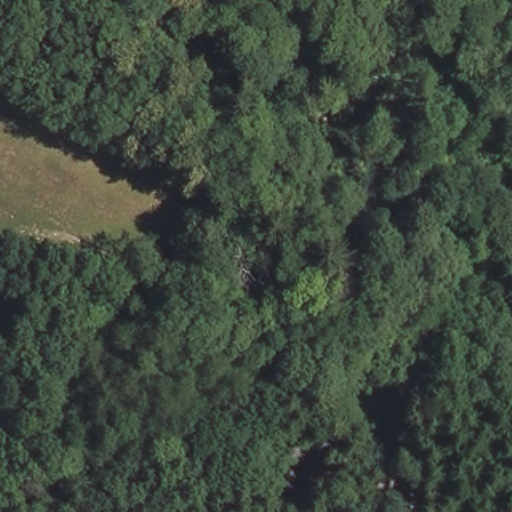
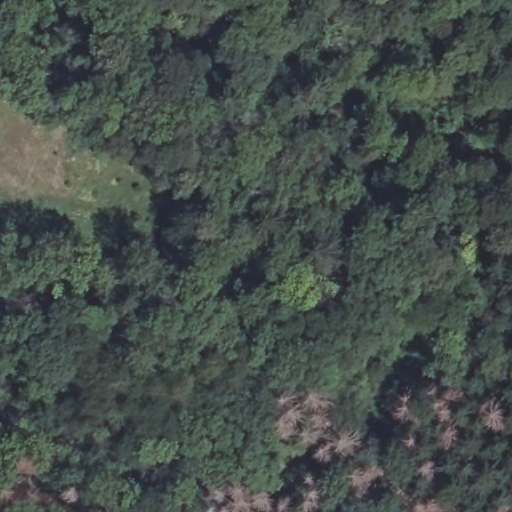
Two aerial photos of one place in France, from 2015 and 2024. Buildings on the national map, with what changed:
unchanged [(111,305),(134,318),(117,350),(94,336),(111,305)]

